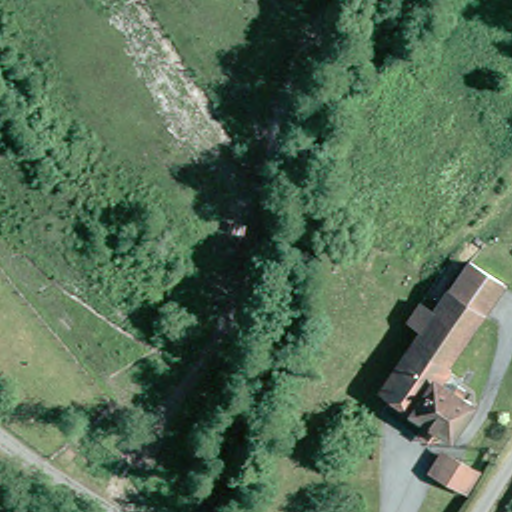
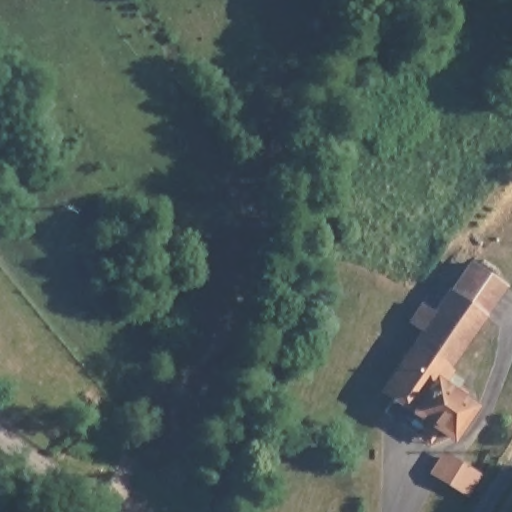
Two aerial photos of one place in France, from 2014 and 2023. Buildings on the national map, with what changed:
unchanged [(506,283),(477,324),(447,303),(476,262),(506,283)]
unchanged [(477,324),(490,334),(459,380),(446,372),(440,382),(419,412),(388,391),(408,362),(415,351),(429,330),(417,321),(402,310),(413,293),(427,302),(441,312),(447,303),(477,324)]
unchanged [(463,393),(471,398),(468,403),(478,409),(457,439),(419,412),(440,382),(460,397),(463,393)]
unchanged [(465,493),(437,473),(448,453),(478,473),(465,493)]

